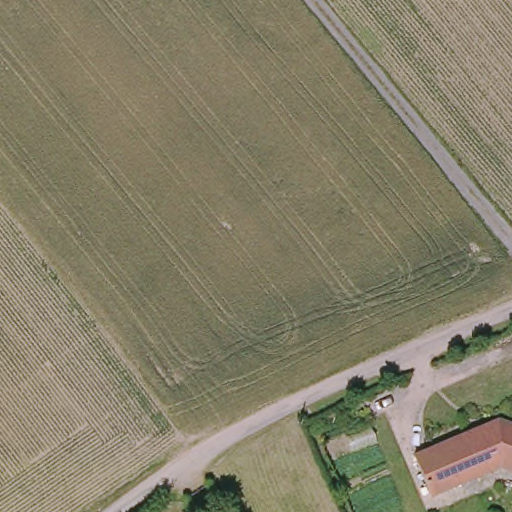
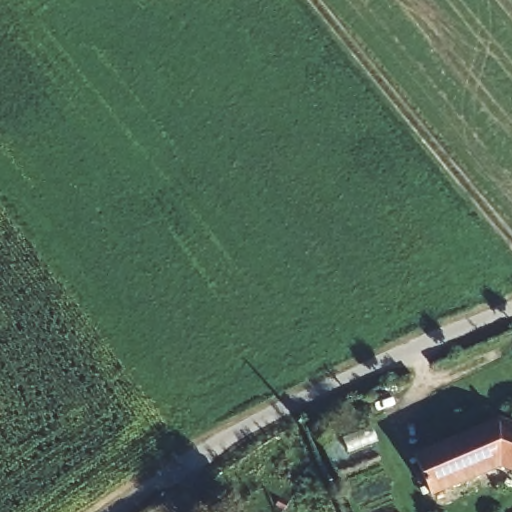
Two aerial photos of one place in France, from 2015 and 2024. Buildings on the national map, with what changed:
unchanged [(499,420),(512,424),(512,465),(503,462),(429,492),(414,455),(499,420)]

